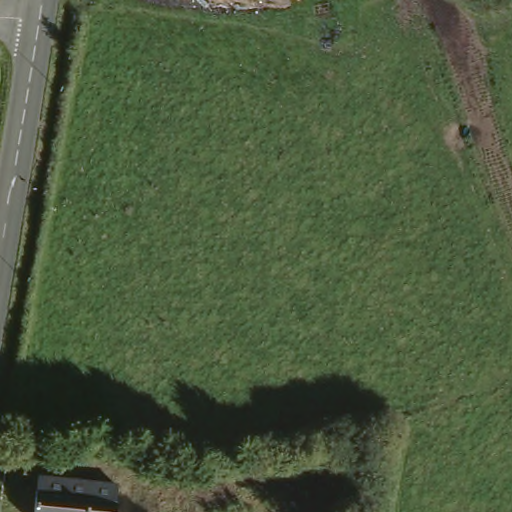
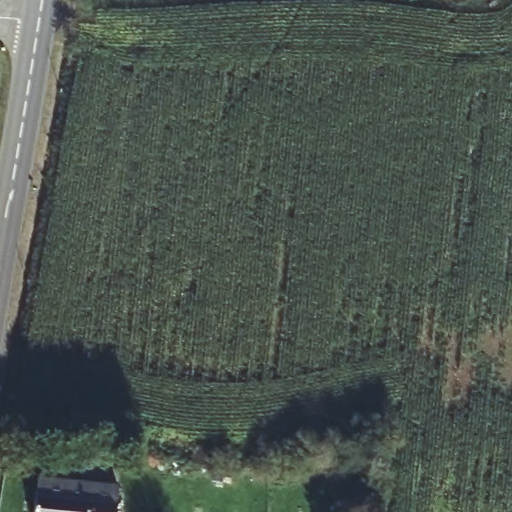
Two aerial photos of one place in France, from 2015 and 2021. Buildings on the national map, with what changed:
unchanged [(169,433),(168,450),(168,457),(149,457),(149,449),(151,432),(169,433)]
unchanged [(33,512),(35,472),(88,477),(88,463),(142,469),(140,512),(33,512)]
unchanged [(206,477),(204,506),(146,502),(148,474),(206,477)]

